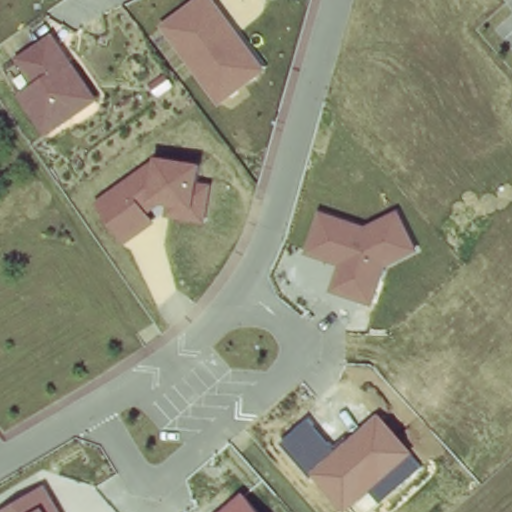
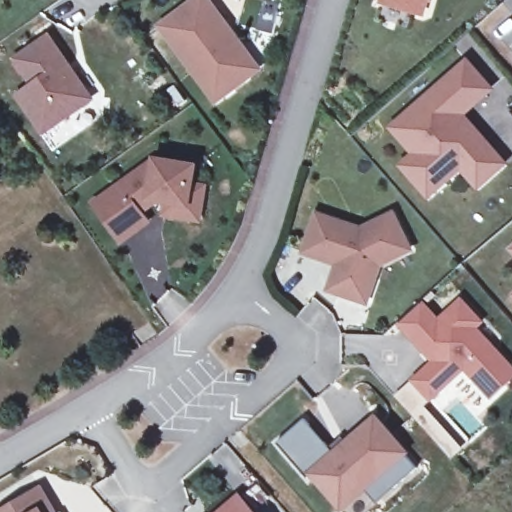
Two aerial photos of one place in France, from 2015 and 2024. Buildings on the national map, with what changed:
unchanged [(214,0),(267,71),(218,106),(160,25),(193,0),(214,0)]
new [(384,2),(385,0),(426,0),(423,13),(384,2)]
unchanged [(52,30),(98,101),(45,137),(17,98),(31,87),(12,60),(52,30)]
new [(419,180),(401,161),(414,149),(390,123),(463,55),(488,82),(460,108),(504,156),(478,180),(460,161),(429,191),(419,180)]
unchanged [(149,164),(151,154),(200,161),(197,181),(214,182),(207,225),(168,220),(167,207),(161,205),(149,214),(155,224),(123,244),(95,203),(149,164)]
unchanged [(315,210),(362,226),(398,210),(417,252),(380,268),(367,307),(328,292),(336,266),(302,255),(315,210)]
new [(478,386),(462,367),(427,398),(411,381),(432,361),(423,351),(399,323),(421,302),(437,321),(460,300),(480,322),(475,328),(505,362),(512,369),(512,376),(488,397),(478,386)]
unchanged [(309,417),(334,448),(376,412),(420,467),(377,502),(367,491),(341,512),(313,477),(309,480),(277,443),(309,417)]
unchanged [(59,512),(0,512),(0,511),(42,483),(59,512)]
unchanged [(243,493),(260,512),(223,512),(243,493)]

